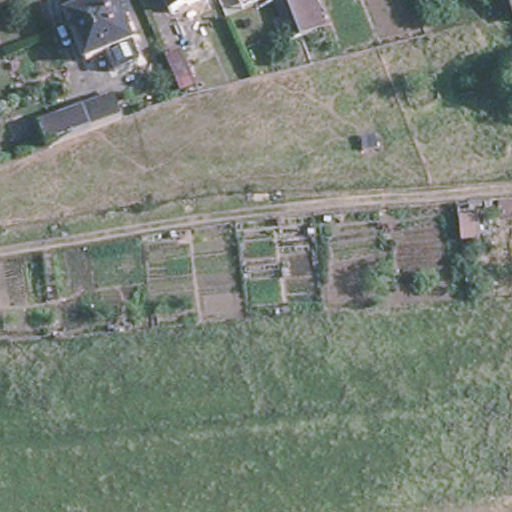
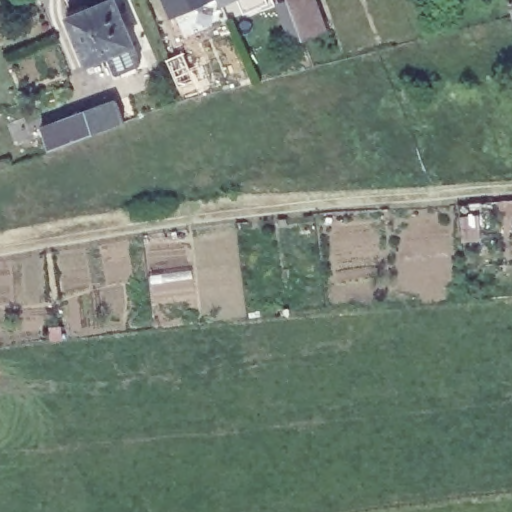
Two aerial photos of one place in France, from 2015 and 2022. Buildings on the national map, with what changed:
unchanged [(89,4),(90,9),(115,0),(134,46),(87,64),(70,18),(72,17),(70,11),(89,4)]
unchanged [(167,0),(209,0),(173,15),(167,0)]
unchanged [(220,0),(259,0),(227,14),(220,0)]
unchanged [(305,40),(290,0),(314,0),(327,32),(305,40)]
unchanged [(191,80),(178,85),(165,55),(179,50),(191,80)]
unchanged [(126,123),(50,151),(43,130),(118,102),(126,123)]

